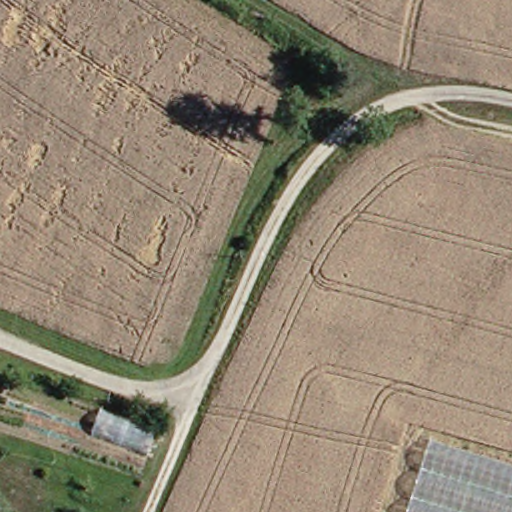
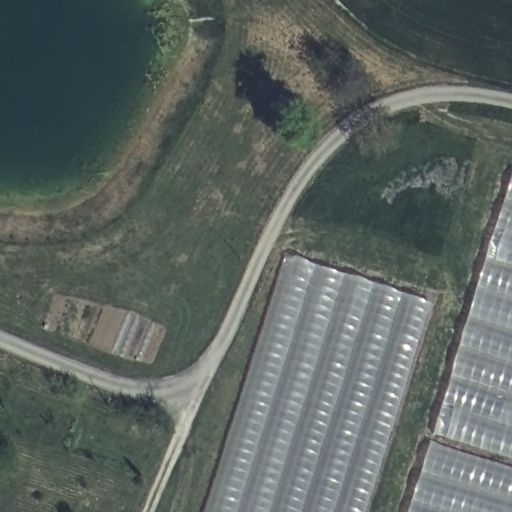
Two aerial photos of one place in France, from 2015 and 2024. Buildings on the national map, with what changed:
new [(512,175),(512,454),(435,429),(512,175)]
new [(367,512),(203,512),(287,255),(435,304),(367,512)]
new [(512,512),(408,512),(430,442),(512,467),(512,512)]

